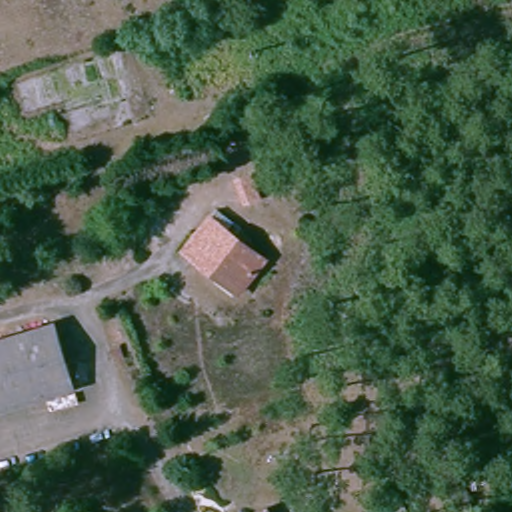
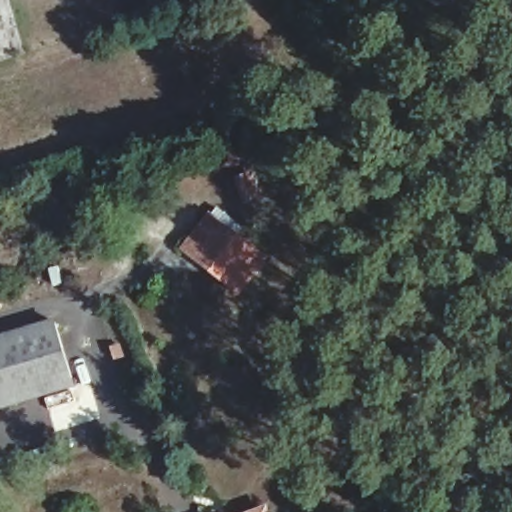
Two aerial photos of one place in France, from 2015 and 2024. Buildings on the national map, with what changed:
unchanged [(266,250),(232,302),(186,271),(200,247),(190,237),(209,211),(266,250)]
unchanged [(0,338),(51,321),(72,389),(0,411),(0,338)]

